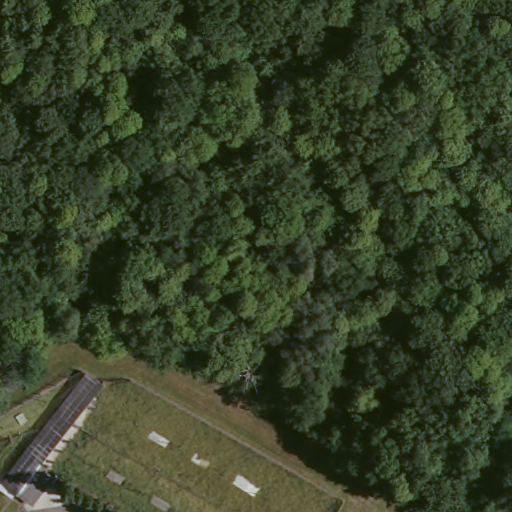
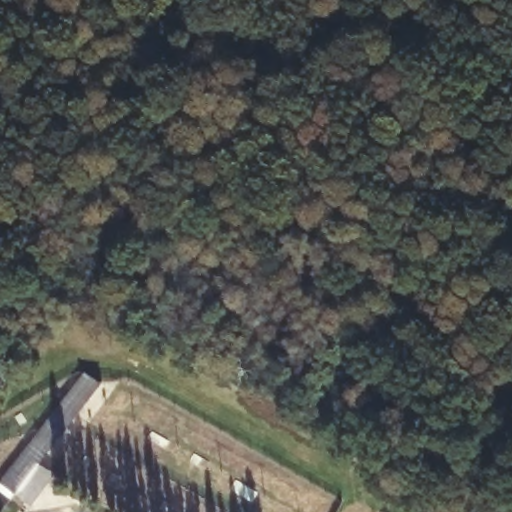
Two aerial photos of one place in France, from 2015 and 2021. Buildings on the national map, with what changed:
unchanged [(38,466),(52,479),(24,512),(23,512),(0,492),(0,477),(83,375),(99,387),(38,466)]

